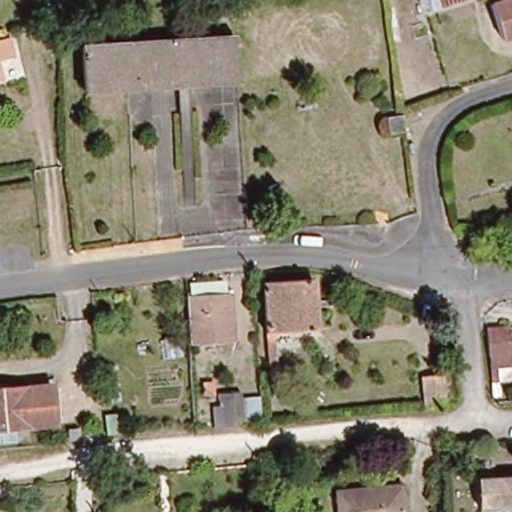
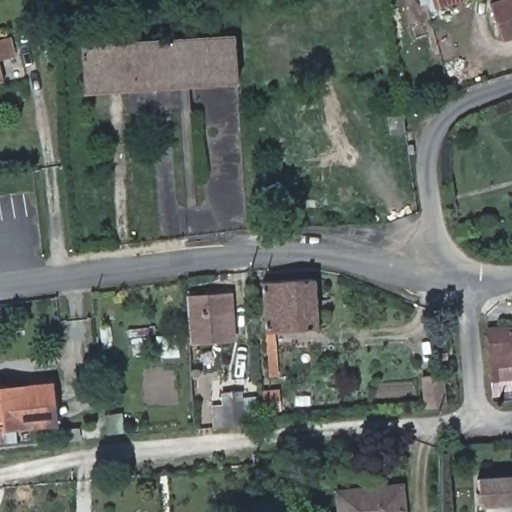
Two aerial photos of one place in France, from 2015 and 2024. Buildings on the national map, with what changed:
unchanged [(470,1),(432,10),(428,0),(470,0),(470,1)]
unchanged [(488,11),(512,2),(512,41),(501,45),(488,11)]
unchanged [(84,100),(79,55),(228,25),(233,71),(84,100)]
unchanged [(313,276),(317,328),(284,332),(286,365),(272,367),(266,283),(313,276)]
unchanged [(224,295),(227,334),(186,338),(184,298),(224,295)]
unchanged [(496,359),(492,332),(511,328),(512,328),(512,361),(497,363),(496,359)]
unchanged [(444,411),(431,412),(431,380),(448,379),(449,411),(444,411)]
unchanged [(49,386),(53,424),(0,430),(0,391),(49,386)]
unchanged [(225,406),(233,406),(232,395),(251,394),(252,416),(251,416),(252,427),(226,429),(225,406)]
unchanged [(474,476),(512,475),(512,501),(475,502),(474,476)]
unchanged [(400,485),(401,512),(339,512),(337,488),(400,485)]

